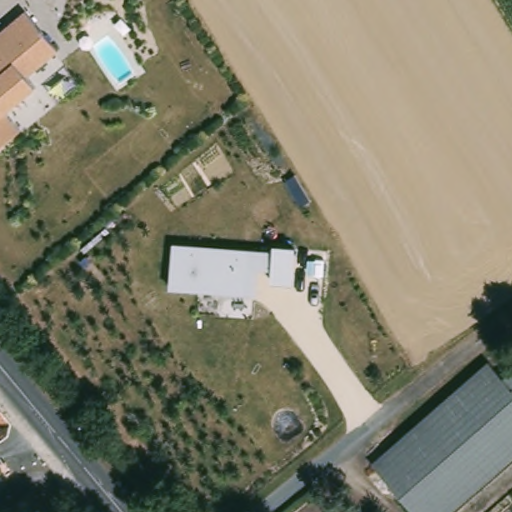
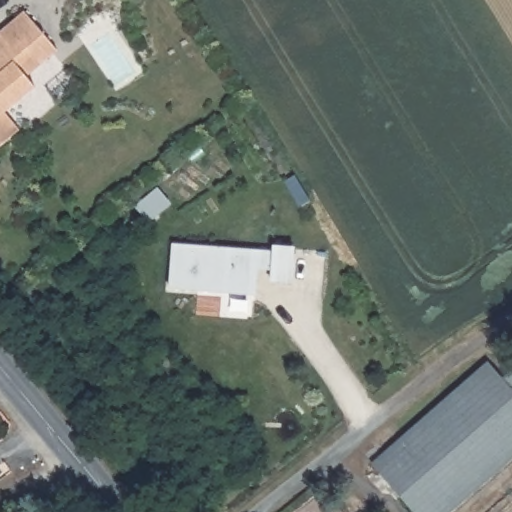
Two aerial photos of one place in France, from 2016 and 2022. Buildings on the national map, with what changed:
unchanged [(25,12),(56,50),(30,80),(35,88),(5,111),(19,131),(0,147),(0,32),(25,12)]
unchanged [(272,250),(272,245),(295,247),(292,283),(270,282),(270,271),(257,270),(255,296),(167,291),(171,243),(272,250)]
unchanged [(512,393),(512,453),(446,512),(413,512),(370,463),(483,361),(497,376),(512,393)]
unchanged [(512,366),(512,393),(497,376),(512,366)]

